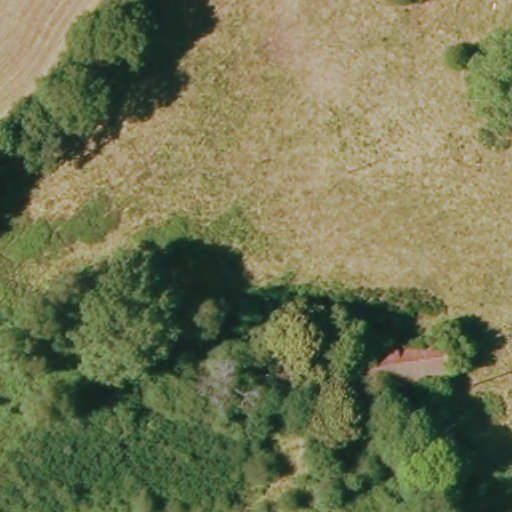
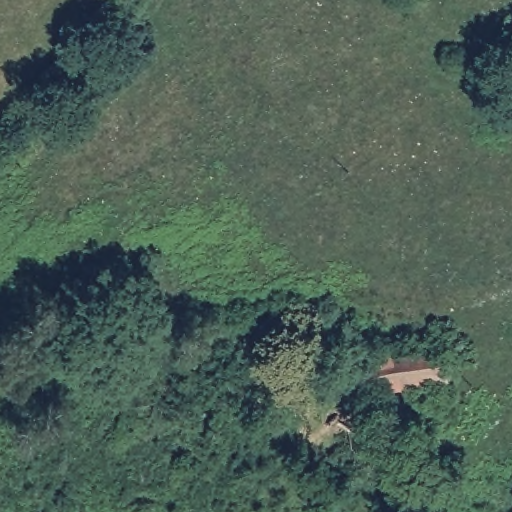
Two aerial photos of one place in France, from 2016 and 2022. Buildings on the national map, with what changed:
unchanged [(446,339),(452,380),(366,393),(360,352),(446,339)]

